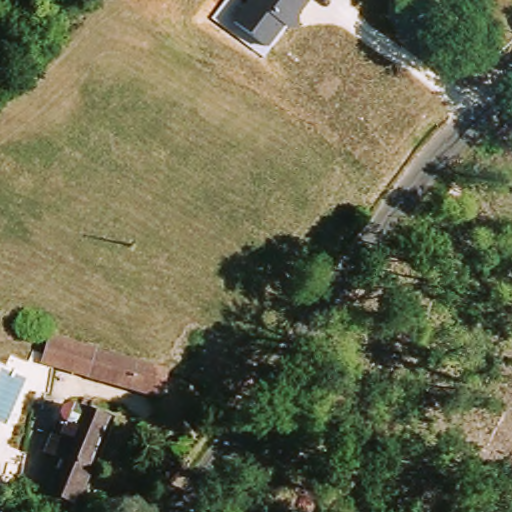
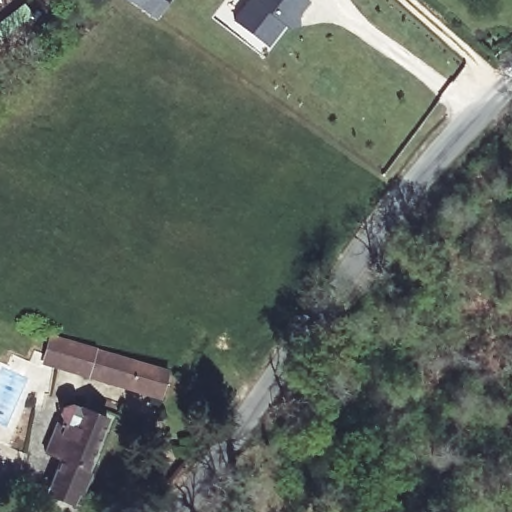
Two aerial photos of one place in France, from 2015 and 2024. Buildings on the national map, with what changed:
new [(129,0),(169,0),(156,19),(129,0)]
unchanged [(309,1),(298,16),(300,26),(284,26),(268,49),(231,20),(246,0),(308,0),(309,1)]
unchanged [(53,364),(61,340),(148,372),(139,396),(53,364)]
unchanged [(65,410),(67,405),(73,404),(78,405),(83,413),(110,424),(72,509),(47,498),(63,459),(49,455),(63,422),(69,419),(66,415),(65,410)]

